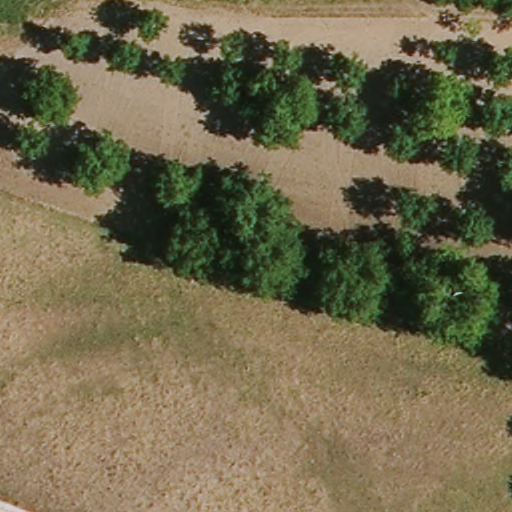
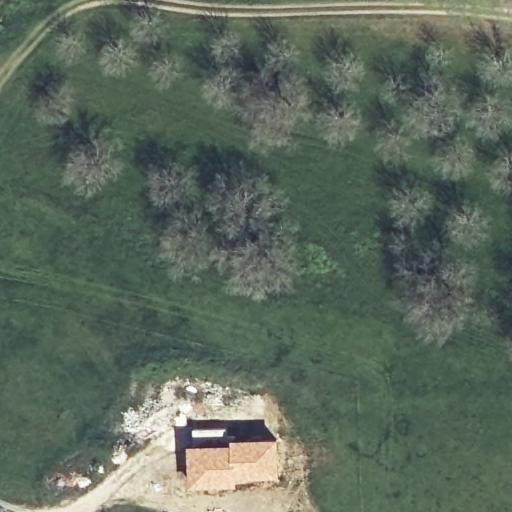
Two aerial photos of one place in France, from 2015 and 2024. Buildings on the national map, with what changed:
new [(231,442),(231,438),(279,437),(281,480),(189,489),(188,443),(231,442)]

